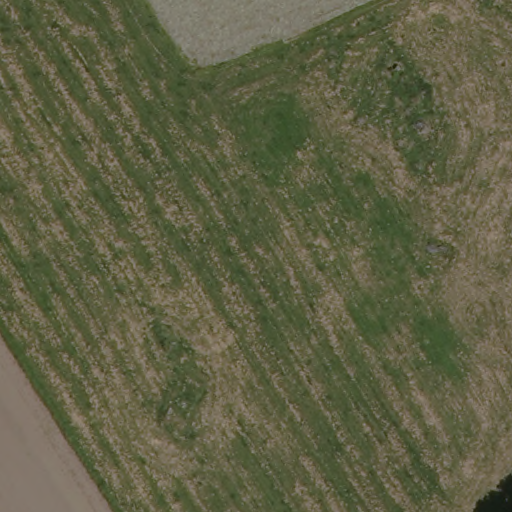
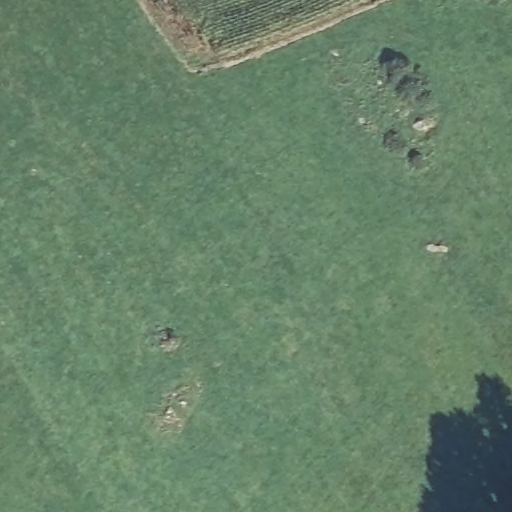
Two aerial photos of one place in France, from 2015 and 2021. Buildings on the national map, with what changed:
[]

